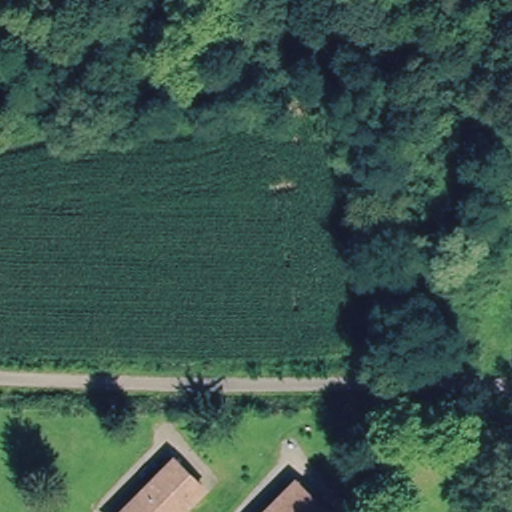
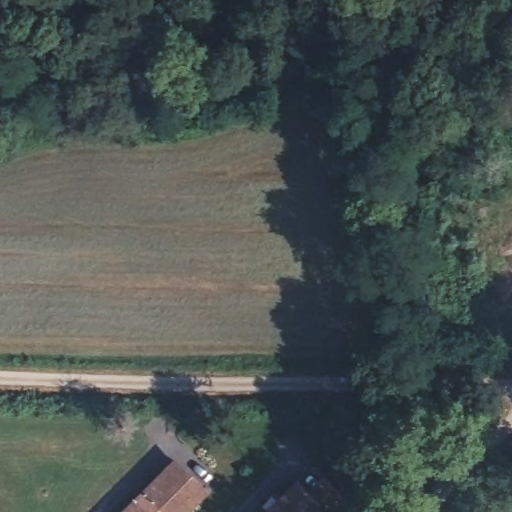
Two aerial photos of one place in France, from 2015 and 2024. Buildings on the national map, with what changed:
unchanged [(185,512),(126,512),(181,461),(209,490),(185,512)]
unchanged [(303,485),(329,512),(274,512),(303,485)]

